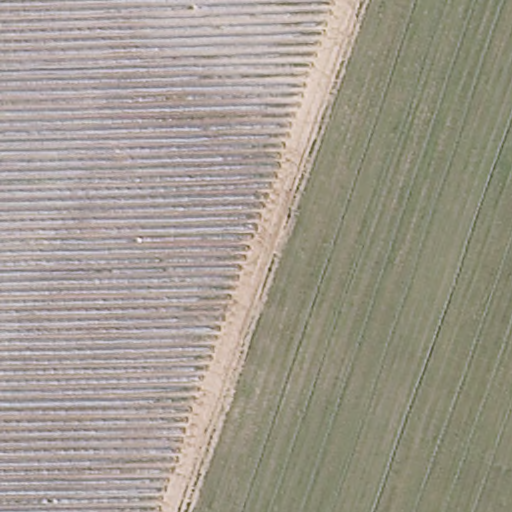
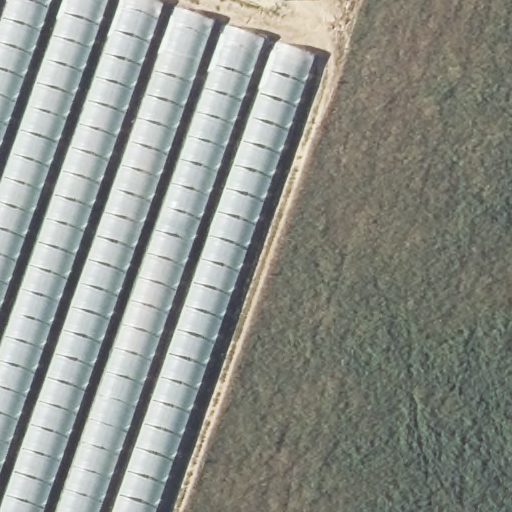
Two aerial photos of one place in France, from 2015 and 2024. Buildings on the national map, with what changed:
new [(157,512),(0,512),(0,0),(151,0),(316,58),(157,512)]

